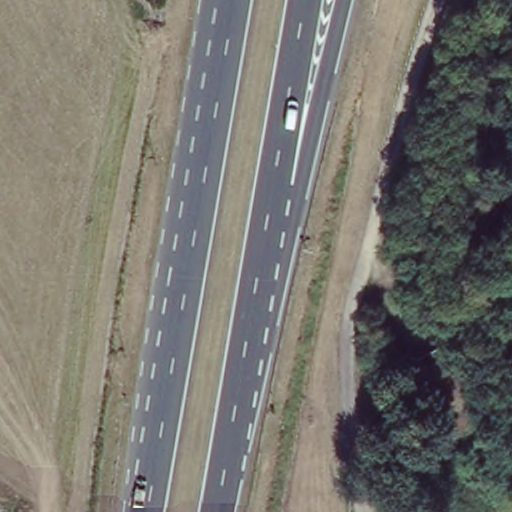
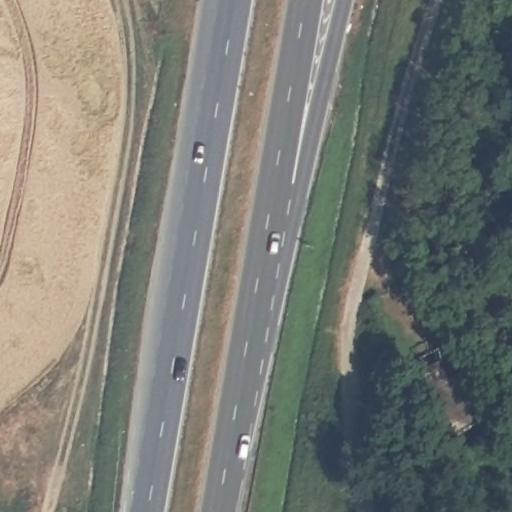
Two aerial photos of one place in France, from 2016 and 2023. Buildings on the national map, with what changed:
unchanged [(460,359),(489,423),(450,441),(422,377),(460,359)]

